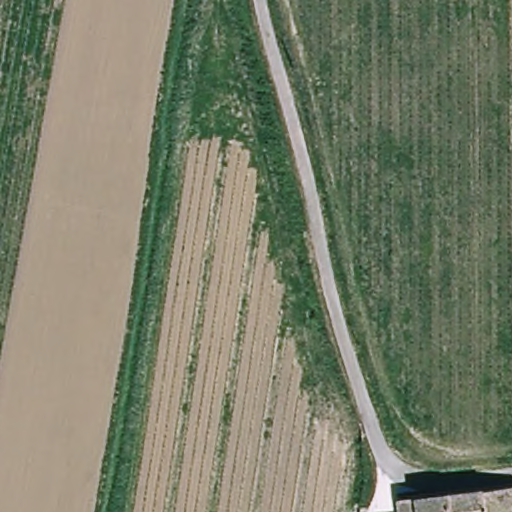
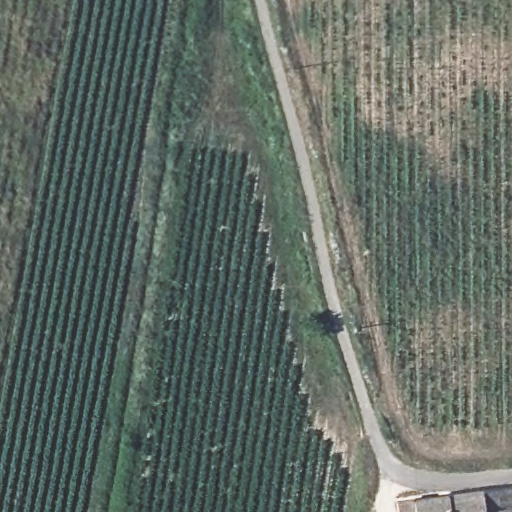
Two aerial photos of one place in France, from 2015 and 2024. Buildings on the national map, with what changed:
unchanged [(512,483),(512,512),(400,512),(398,500),(512,483)]

